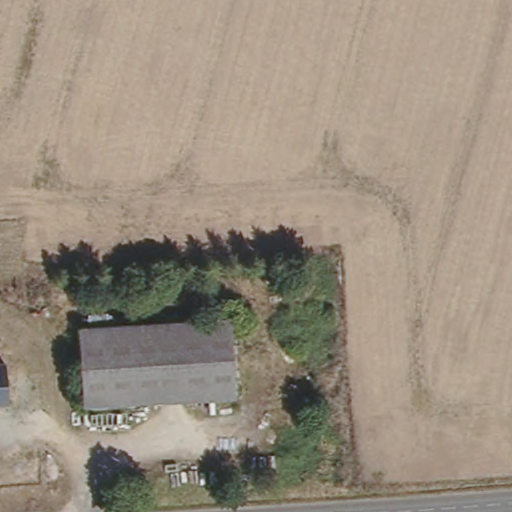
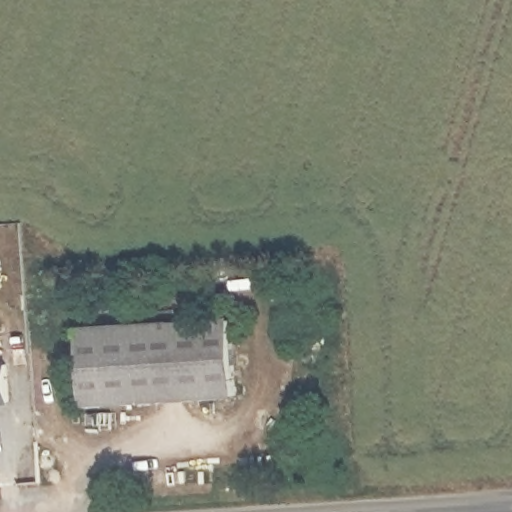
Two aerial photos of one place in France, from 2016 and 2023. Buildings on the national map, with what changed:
unchanged [(225,313),(231,390),(79,403),(72,325),(225,313)]
unchanged [(0,359),(8,359),(11,400),(0,402),(0,359)]

